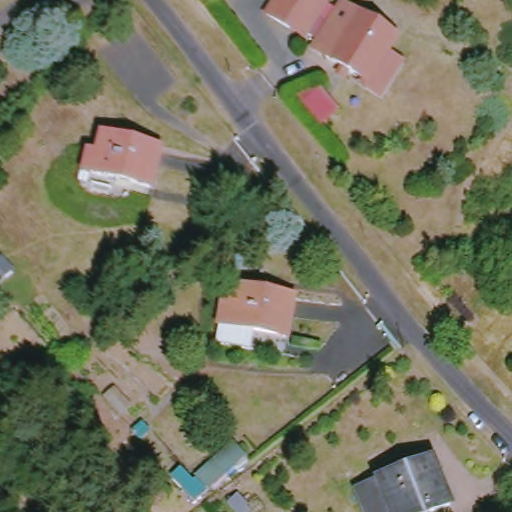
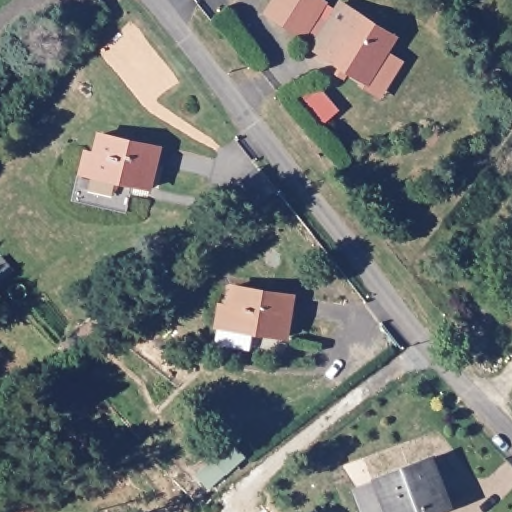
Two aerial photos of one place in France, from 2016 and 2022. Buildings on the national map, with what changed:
unchanged [(328,0),(332,3),(321,16),(332,25),(349,5),(397,43),(367,81),(319,43),(325,36),(312,26),(306,34),(294,24),(274,8),(280,0),(328,0)]
unchanged [(92,179),(95,157),(104,158),(108,140),(160,149),(152,189),(92,179)]
unchanged [(225,325),(227,302),(237,303),(239,288),(297,296),(292,335),(225,325)]
unchanged [(195,472),(232,446),(241,458),(204,485),(195,472)]
unchanged [(378,481),(439,456),(459,506),(445,512),(364,512),(357,491),(378,481)]

